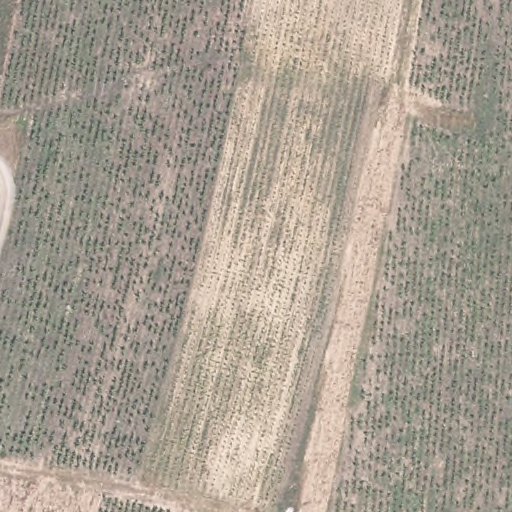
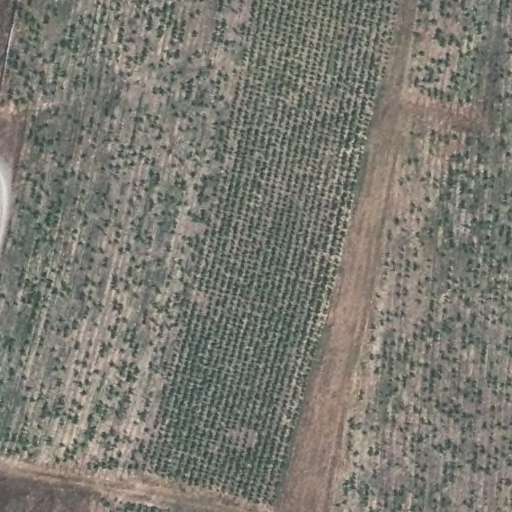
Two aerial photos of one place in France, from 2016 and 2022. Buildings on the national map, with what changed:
[]

